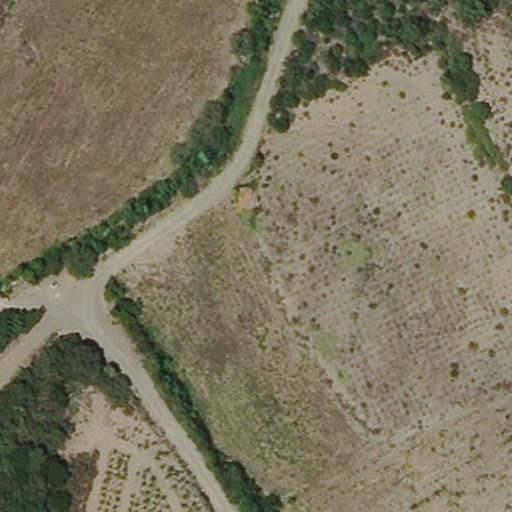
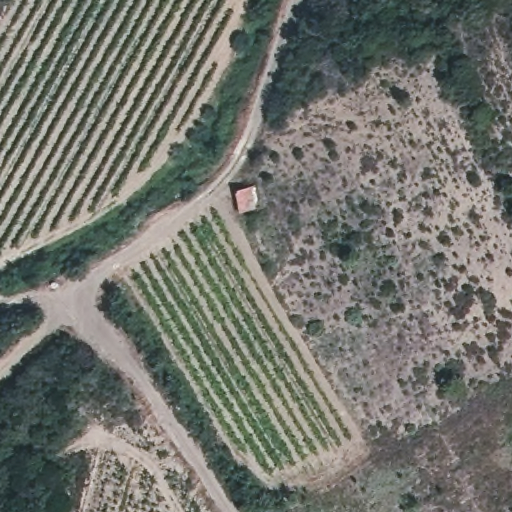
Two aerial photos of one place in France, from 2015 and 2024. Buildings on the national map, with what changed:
unchanged [(257,206),(252,183),(268,179),(272,204),(257,206)]

